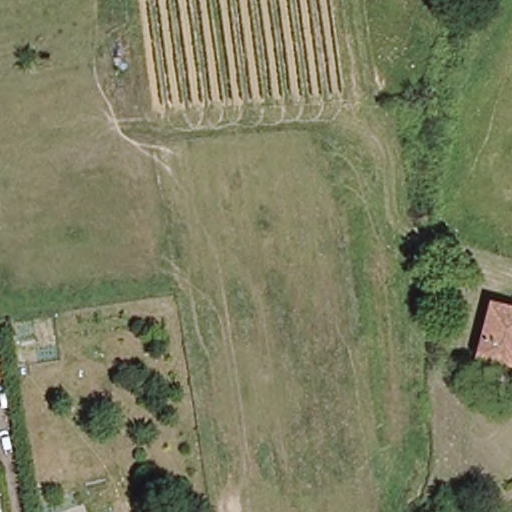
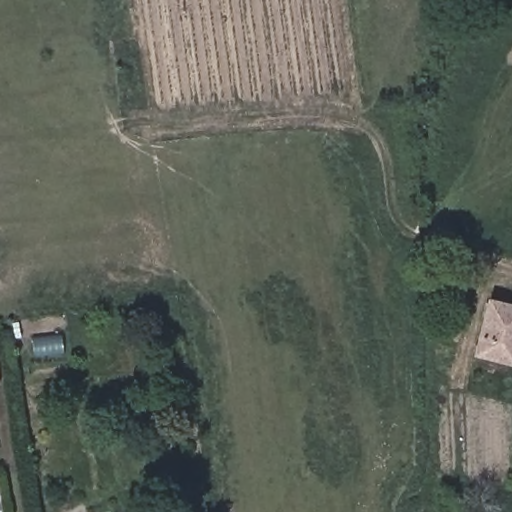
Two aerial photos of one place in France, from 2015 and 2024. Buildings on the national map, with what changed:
unchanged [(512,305),(512,357),(511,360),(479,347),(498,299),(512,305)]

